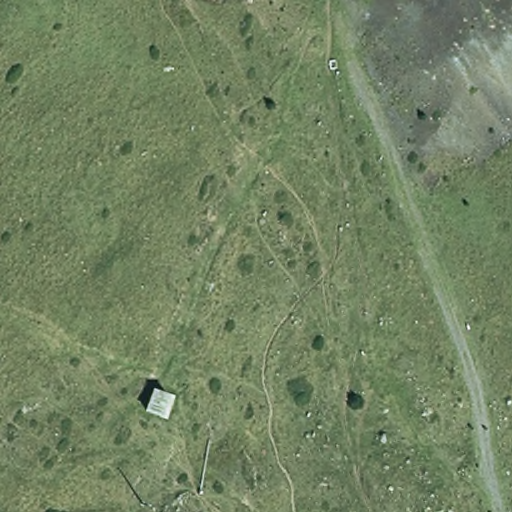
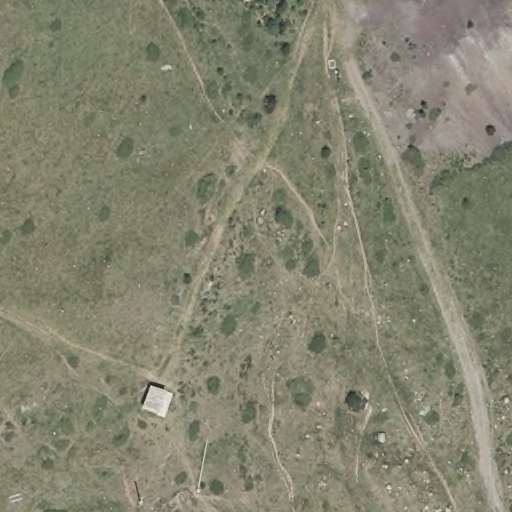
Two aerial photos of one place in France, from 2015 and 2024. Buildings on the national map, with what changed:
unchanged [(139,415),(146,389),(166,395),(158,421),(139,415)]

